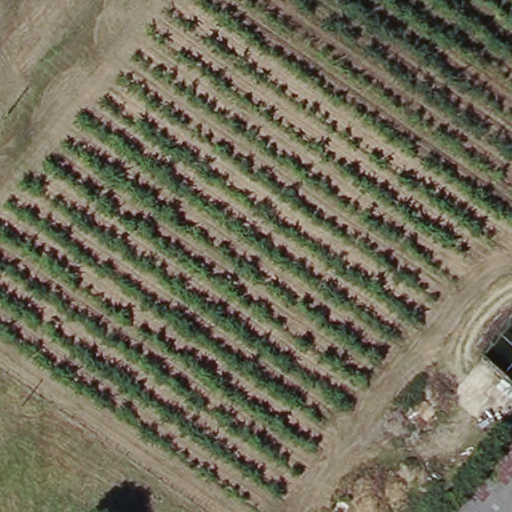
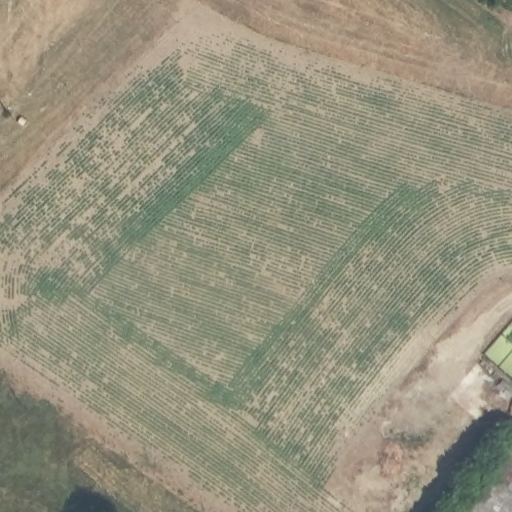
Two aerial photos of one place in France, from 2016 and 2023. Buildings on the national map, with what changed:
unchanged [(512,512),(461,512),(512,448),(512,512)]

